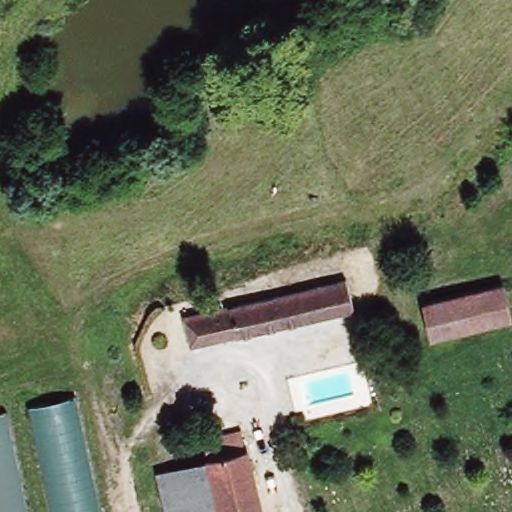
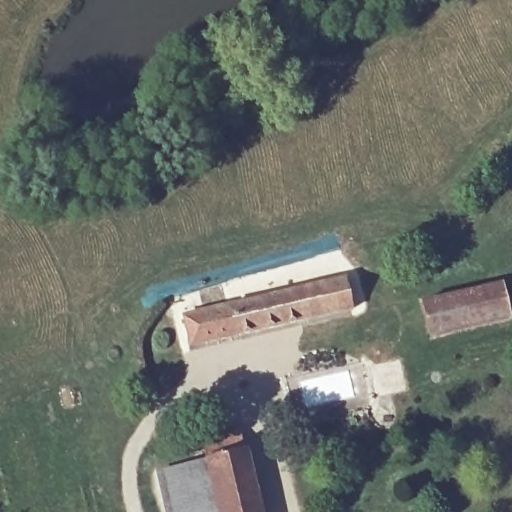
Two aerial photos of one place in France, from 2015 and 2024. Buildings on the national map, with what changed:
unchanged [(191,336),(186,315),(255,300),(348,275),(354,306),(208,339),(192,343),(191,336)]
unchanged [(427,299),(432,299),(500,283),(508,319),(435,335),(427,299)]
demolished [(102,512),(54,512),(33,403),(77,392),(102,512)]
demolished [(29,512),(0,512),(0,408),(8,407),(29,512)]
unchanged [(212,454),(228,450),(226,442),(248,437),(265,512),(224,512),(212,454)]
unchanged [(192,471),(160,474),(158,465),(212,454),(224,512),(201,512),(192,471)]
unchanged [(160,474),(192,471),(201,512),(169,512),(160,474)]

